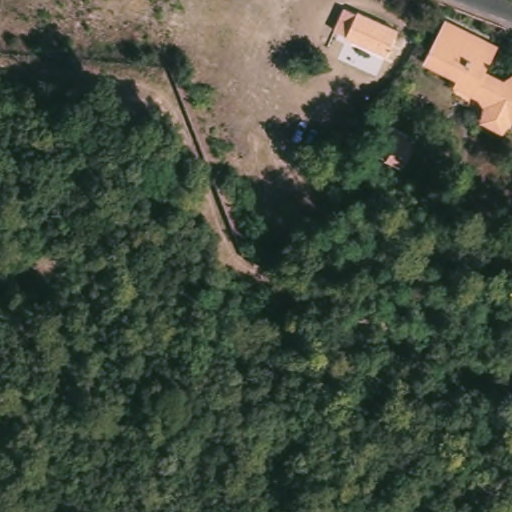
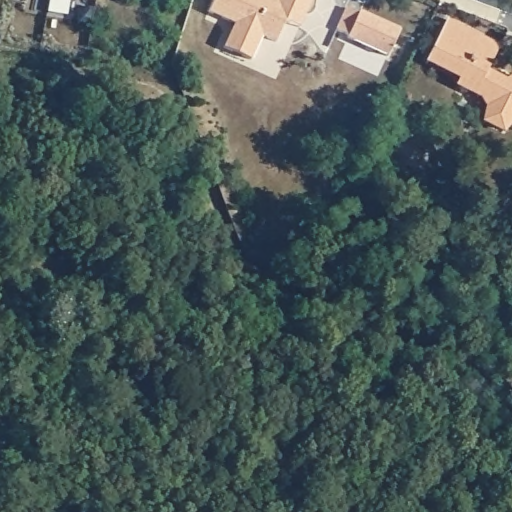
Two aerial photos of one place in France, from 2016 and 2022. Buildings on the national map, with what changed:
new [(85,0),(92,0),(91,1),(85,0)]
new [(283,22),(274,42),(259,36),(249,60),(222,47),(233,24),(206,12),(212,0),(273,0),(275,1),(275,0),(309,0),(302,15),(296,27),(287,24),(283,22)]
unchanged [(403,30),(391,57),(349,37),(353,30),(339,24),(347,5),(403,30)]
unchanged [(461,83),(465,75),(432,58),(452,22),(502,47),(488,72),(508,82),(512,81),(512,126),(508,132),(489,122),(492,116),(478,94),(476,97),(459,88),(461,83)]
unchanged [(385,162),(390,152),(395,142),(389,139),(395,128),(417,140),(406,161),(402,170),(385,162)]

